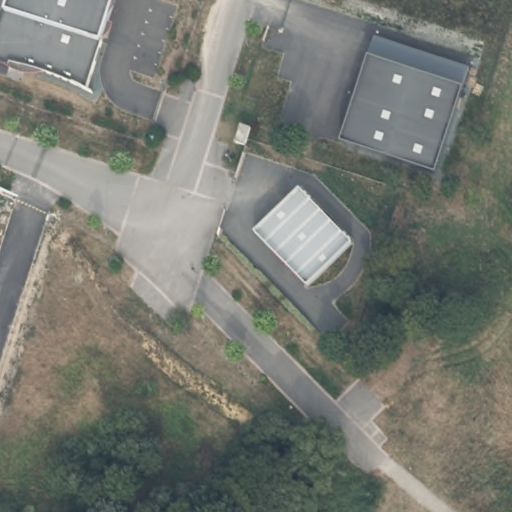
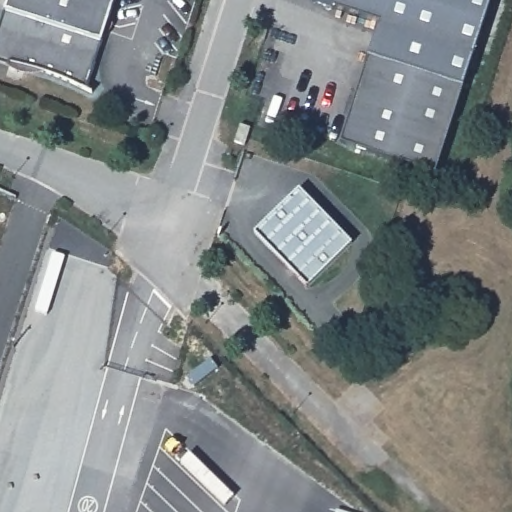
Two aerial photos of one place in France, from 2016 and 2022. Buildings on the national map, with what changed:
unchanged [(99,41),(100,41),(94,59),(84,90),(74,84),(59,77),(49,73),(37,70),(25,66),(24,69),(9,64),(9,65),(0,62),(0,22),(4,10),(3,10),(6,0),(111,0),(99,41)]
new [(377,25),(332,10),(334,0),(492,0),(468,70),(372,39),(377,25)]
unchanged [(435,172),(342,142),(368,56),(372,39),(468,70),(462,87),(435,172)]
unchanged [(299,187),(351,243),(306,287),(253,232),(299,187)]

